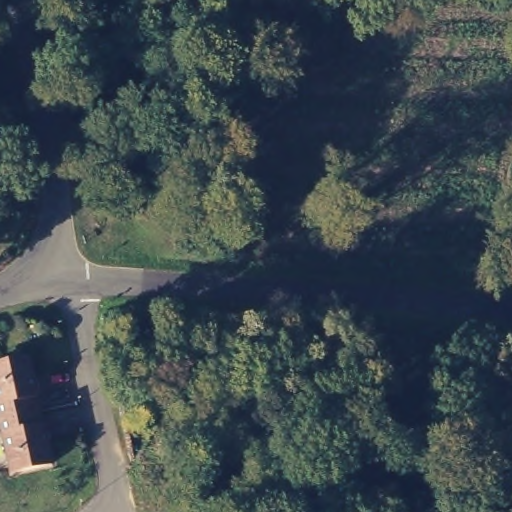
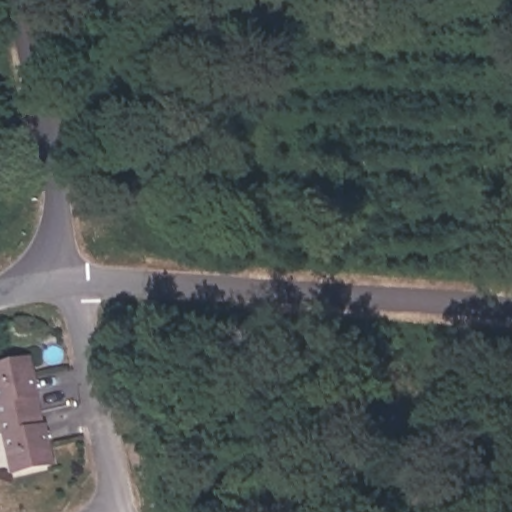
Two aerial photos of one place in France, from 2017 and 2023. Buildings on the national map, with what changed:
unchanged [(26,361),(34,398),(32,399),(39,429),(40,429),(49,466),(10,474),(0,429),(0,367),(26,361)]

